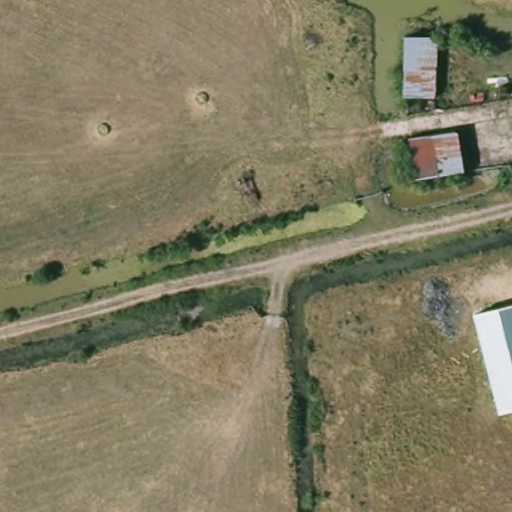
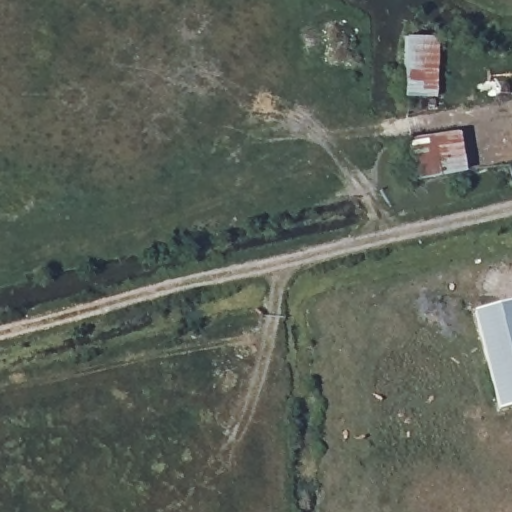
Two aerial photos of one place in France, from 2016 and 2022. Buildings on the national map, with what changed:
unchanged [(400,98),(403,32),(439,31),(438,97),(400,98)]
unchanged [(462,170),(416,179),(408,137),(456,130),(462,170)]
unchanged [(512,304),(512,408),(500,411),(475,314),(512,304)]

